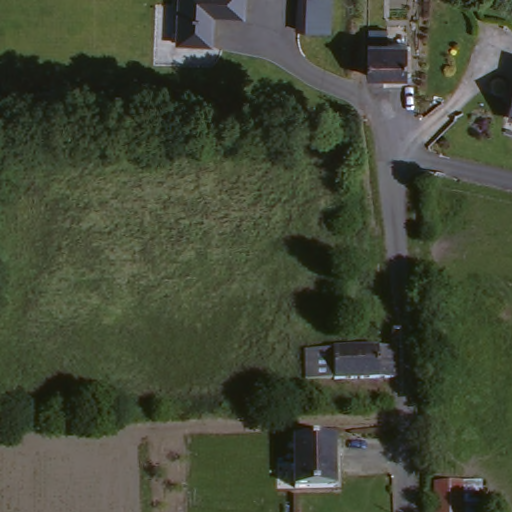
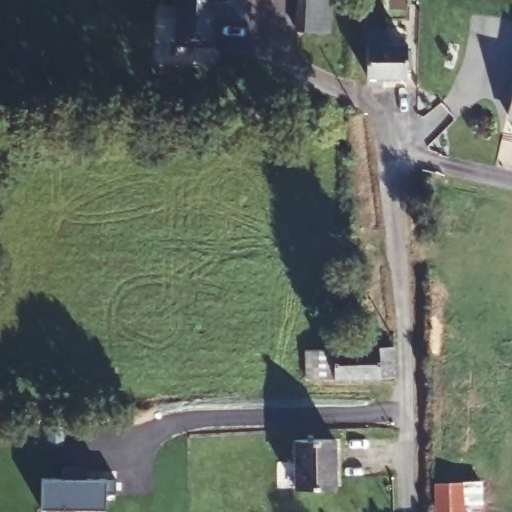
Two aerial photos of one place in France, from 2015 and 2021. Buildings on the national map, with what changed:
unchanged [(242,18),(212,16),(211,46),(175,44),(178,0),(244,0),(242,18)]
unchanged [(300,0),(337,0),(335,31),(299,29),(300,0)]
unchanged [(367,79),(367,46),(405,46),(404,78),(367,79)]
unchanged [(512,75),(512,95),(508,94),(512,75)]
unchanged [(512,95),(512,117),(507,116),(512,95)]
unchanged [(390,348),(394,347),(395,378),(392,378),(307,382),(305,351),(355,349),(390,348)]
unchanged [(295,488),(294,441),(334,440),(335,487),(295,488)]
new [(64,479),(64,467),(87,468),(86,479),(116,479),(115,493),(105,492),(105,508),(42,507),(42,479),(64,479)]
unchanged [(467,512),(440,512),(439,481),(466,480),(467,512)]

